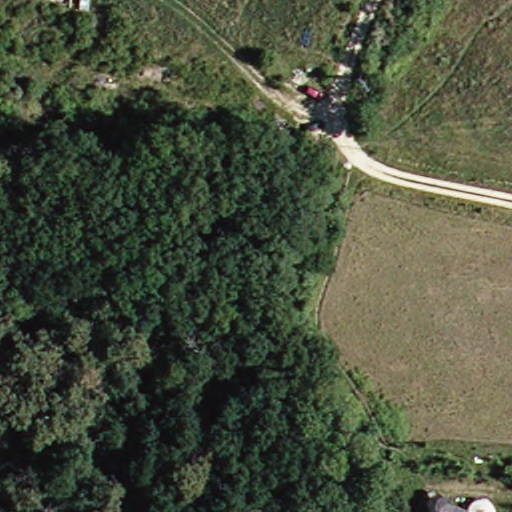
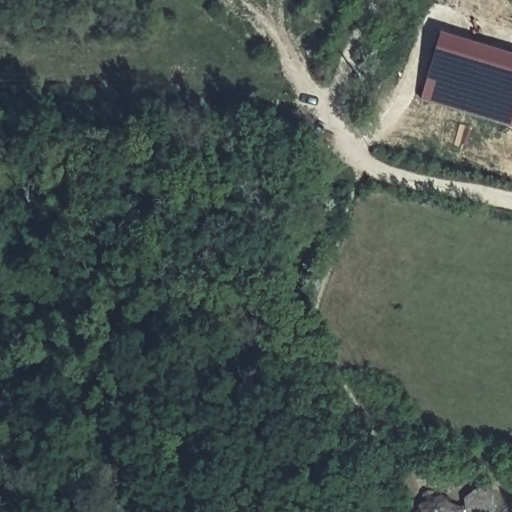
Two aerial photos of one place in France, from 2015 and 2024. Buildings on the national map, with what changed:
new [(512,55),(512,127),(422,100),(442,34),(512,55)]

